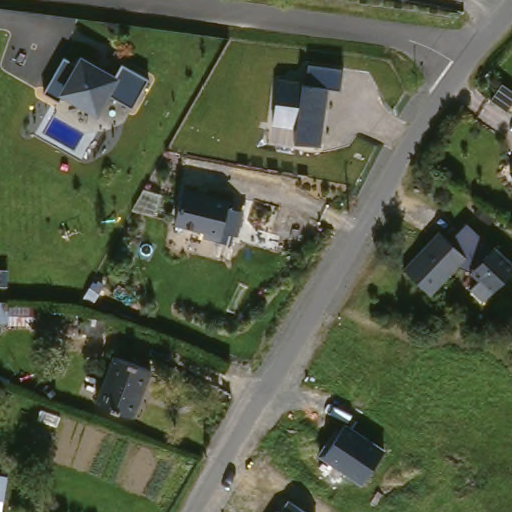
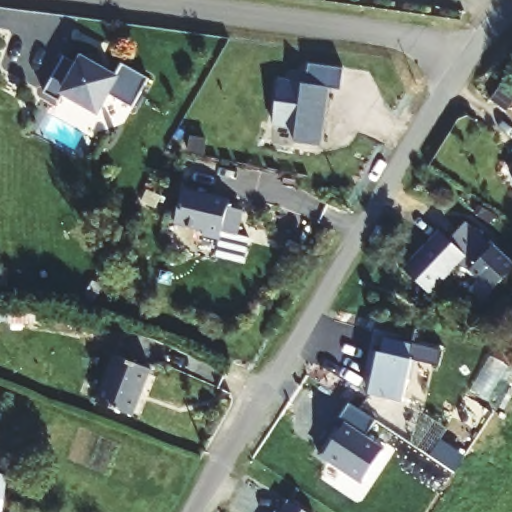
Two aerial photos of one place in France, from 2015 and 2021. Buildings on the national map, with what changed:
unchanged [(62,86),(57,96),(42,87),(62,50),(77,59),(80,53),(112,70),(120,56),(147,71),(131,101),(104,86),(94,103),(62,86)]
unchanged [(295,143),(297,126),(273,124),(278,78),(306,80),(307,64),(343,68),(340,89),(328,87),(321,145),(295,143)]
unchanged [(231,198),(229,207),(242,213),(237,237),(222,231),(219,242),(199,238),(200,229),(172,223),(181,187),(231,198)]
unchanged [(433,287),(408,262),(442,226),(454,235),(470,219),(495,242),(497,239),(512,253),(512,266),(487,294),(473,282),(482,273),(464,257),(433,287)]
new [(375,367),(370,365),(374,348),(382,350),(385,336),(414,342),(411,357),(416,358),(411,377),(408,376),(403,399),(370,391),(375,367)]
unchanged [(120,350),(156,364),(138,411),(101,396),(120,350)]
unchanged [(326,441),(330,444),(346,422),(386,448),(362,483),(318,452),(326,441)]
unchanged [(0,511),(0,474),(7,475),(2,511),(0,511)]
unchanged [(276,510),(281,512),(290,497),(311,512),(275,512),(276,510)]

